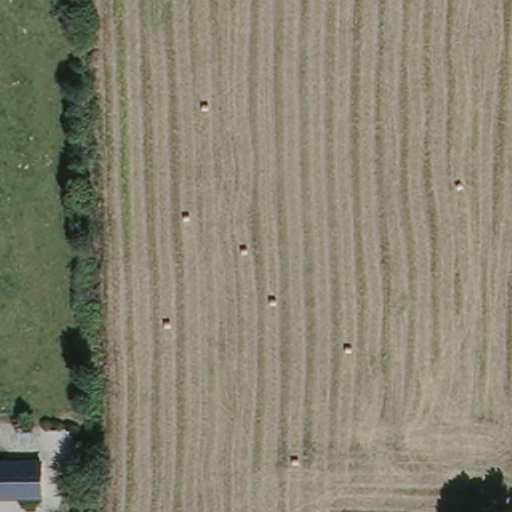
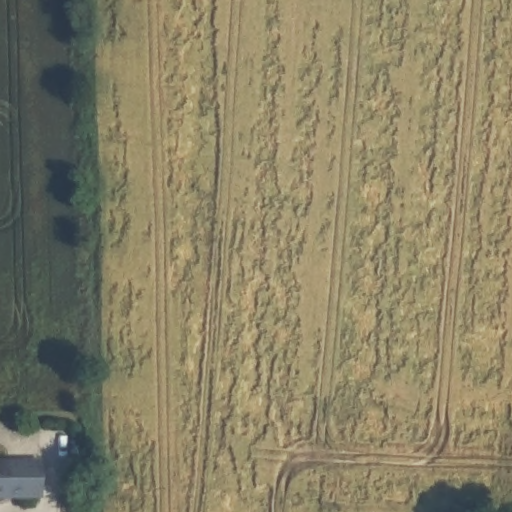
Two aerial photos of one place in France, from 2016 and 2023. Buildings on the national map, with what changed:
unchanged [(40,502),(0,502),(0,465),(39,465),(40,502)]

